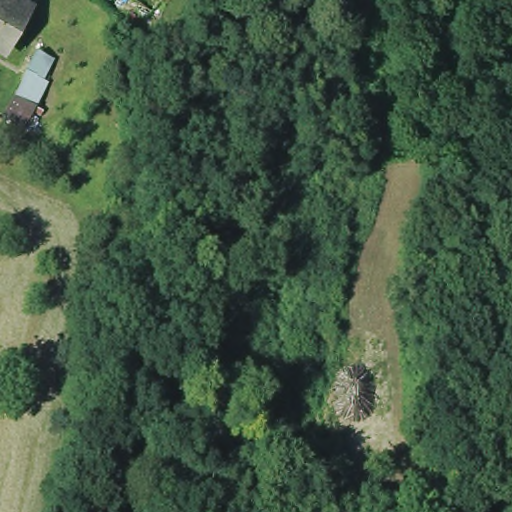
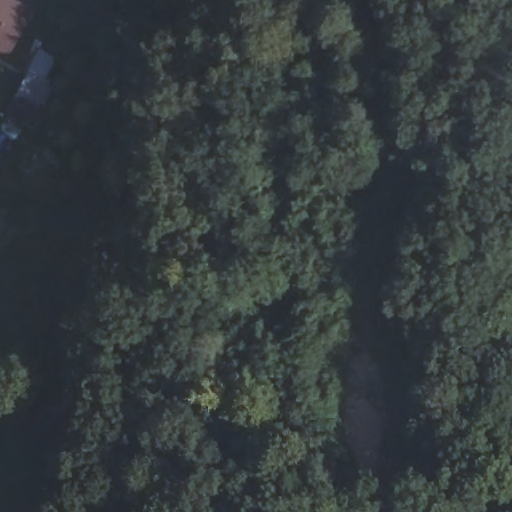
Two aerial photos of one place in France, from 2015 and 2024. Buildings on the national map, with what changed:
unchanged [(10,51),(0,45),(0,0),(23,0),(36,8),(10,51)]

